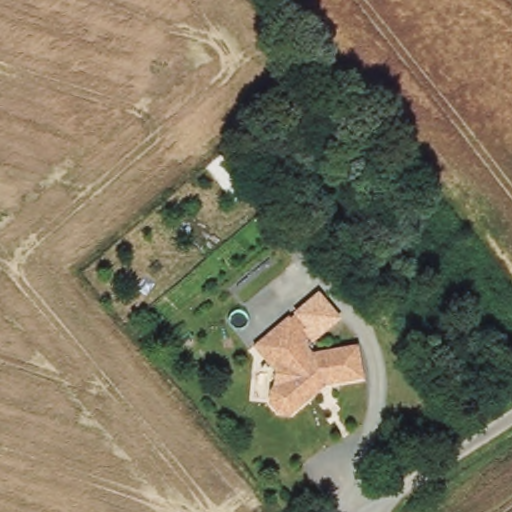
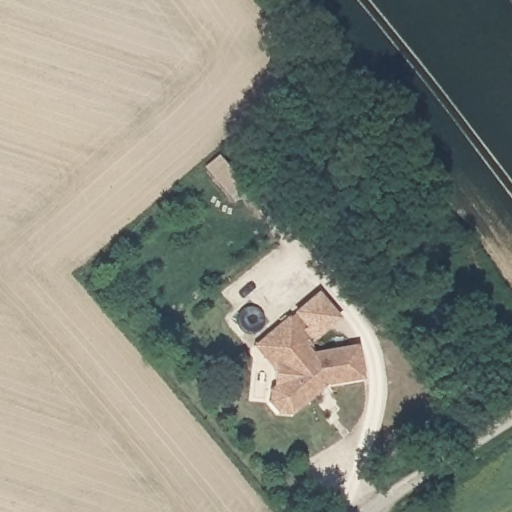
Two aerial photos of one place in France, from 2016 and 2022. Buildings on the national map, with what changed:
unchanged [(292,316),(297,311),(308,324),(303,329),(312,341),(308,344),(313,351),(357,338),(364,372),(329,383),(328,382),(292,412),(287,412),(278,411),(270,401),(271,391),(271,387),(275,384),(276,369),(255,343),(267,333),(290,314),(292,316)]

